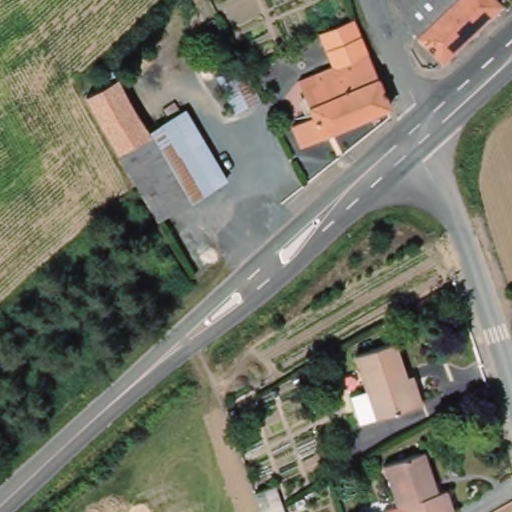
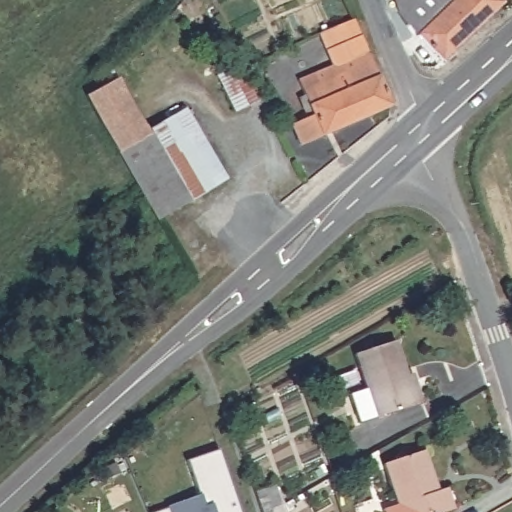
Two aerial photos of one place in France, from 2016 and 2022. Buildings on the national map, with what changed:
unchanged [(400,0),(498,0),(503,5),(446,56),(404,14),(400,0)]
unchanged [(390,105),(299,142),(289,124),(312,112),(296,80),(329,63),(316,32),(354,15),(390,105)]
unchanged [(264,100),(236,114),(223,90),(213,96),(208,85),(246,64),(264,100)]
unchanged [(100,84),(97,77),(113,67),(147,128),(185,107),(225,178),(156,217),(143,195),(86,96),(100,84)]
unchanged [(419,397),(410,401),(358,418),(348,391),(361,385),(353,355),(393,342),(403,372),(410,371),(419,397)]
unchanged [(401,503),(385,463),(425,447),(440,487),(449,484),(457,506),(444,512),(388,512),(390,507),(401,503)]
new [(156,512),(169,508),(168,505),(199,495),(187,461),(218,450),(239,512),(156,512)]
new [(286,512),(263,512),(255,490),(276,484),(286,512)]
demolished [(285,484),(290,504),(293,512),(272,512),(264,491),(285,484)]

